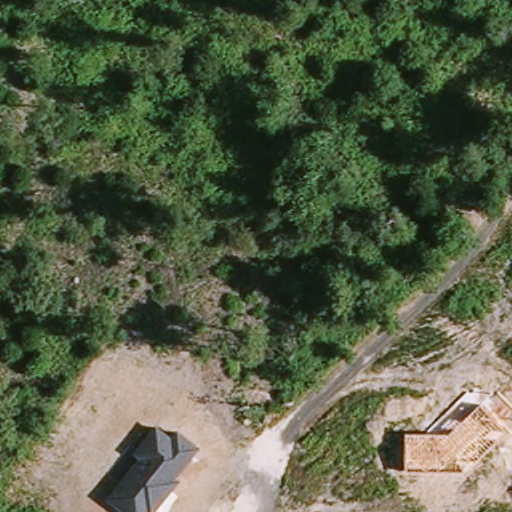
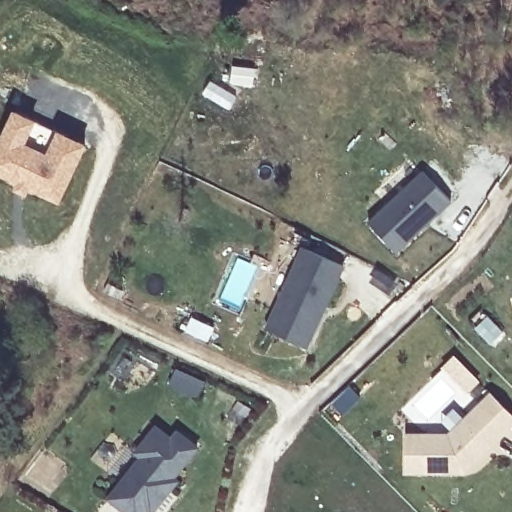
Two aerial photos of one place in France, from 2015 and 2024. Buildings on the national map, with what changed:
new [(10,114),(81,144),(57,200),(0,176),(0,137),(10,114)]
new [(425,174),(452,205),(393,253),(367,221),(425,174)]
new [(345,265),(309,348),(265,329),(300,244),(345,265)]
unchanged [(507,428),(464,471),(404,471),(404,431),(450,433),(479,401),(507,428)]
unchanged [(200,447),(177,477),(182,480),(156,512),(150,512),(149,512),(126,512),(107,496),(139,457),(132,452),(155,421),(173,436),(177,429),(200,447)]

